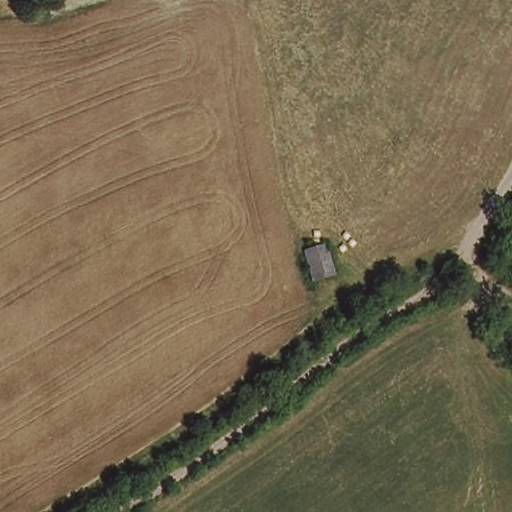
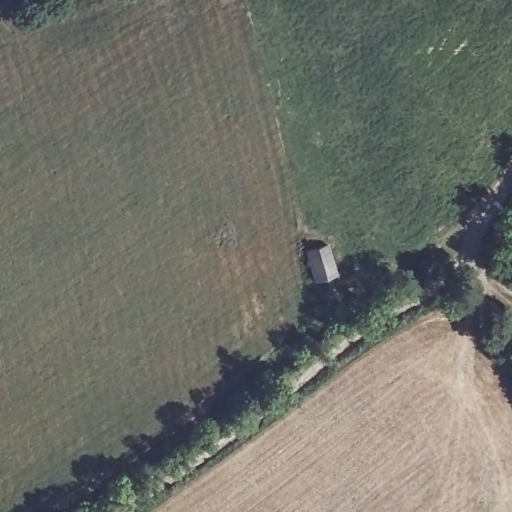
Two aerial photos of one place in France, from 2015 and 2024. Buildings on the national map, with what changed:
unchanged [(311,252),(330,244),(345,275),(325,283),(311,252)]

